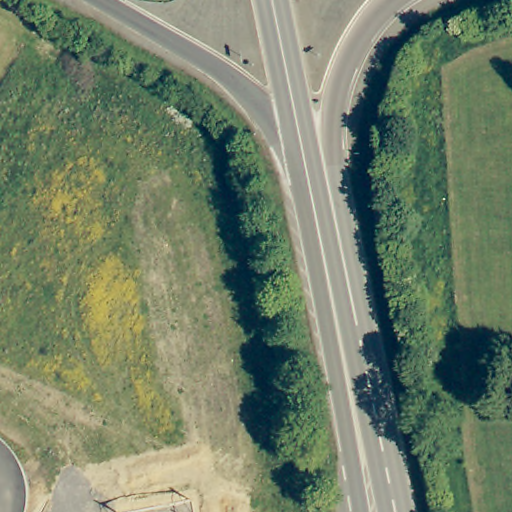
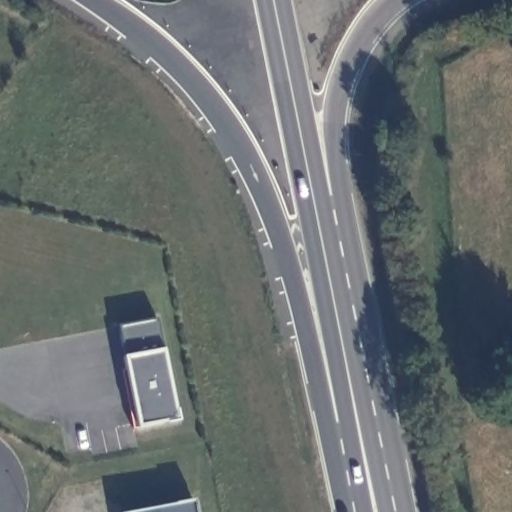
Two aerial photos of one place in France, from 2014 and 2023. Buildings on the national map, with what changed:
new [(124,356),(119,326),(158,317),(164,349),(178,419),(138,427),(124,356)]
unchanged [(133,512),(192,500),(194,512),(133,512)]

